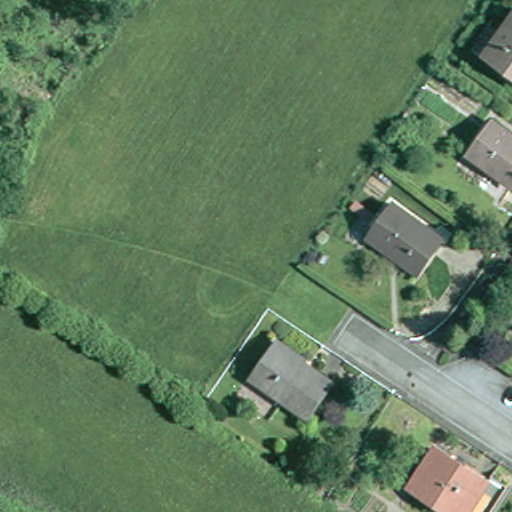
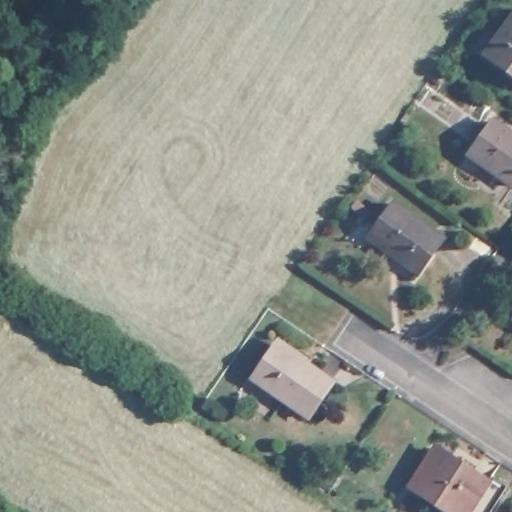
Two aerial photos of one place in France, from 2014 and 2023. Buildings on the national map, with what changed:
unchanged [(512,19),(512,75),(485,55),(512,19)]
unchanged [(492,121),(512,135),(512,180),(510,182),(469,153),(492,121)]
unchanged [(419,272),(402,260),(403,257),(370,234),(393,201),(444,236),(419,272)]
unchanged [(307,416),(250,378),(274,344),(329,380),(307,416)]
unchanged [(485,487),(469,512),(442,512),(410,491),(435,453),(485,487)]

